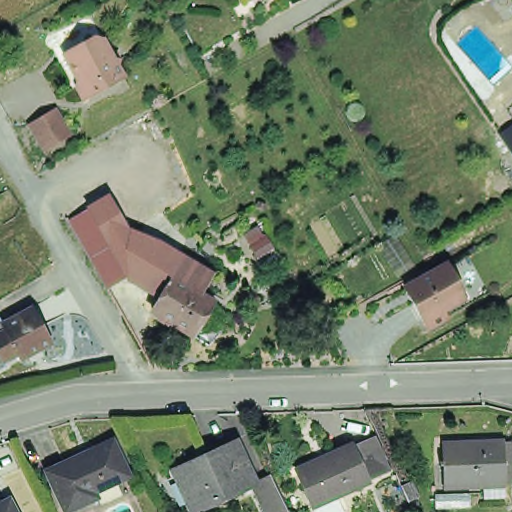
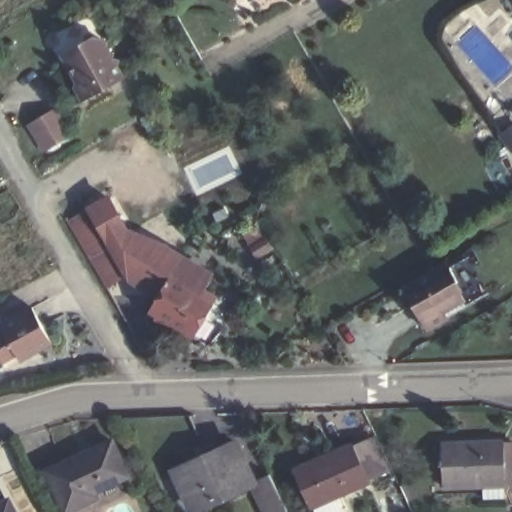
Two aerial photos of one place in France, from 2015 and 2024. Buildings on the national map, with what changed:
unchanged [(249,0),(251,0),(249,1),(249,0)]
unchanged [(82,51),(84,43),(94,38),(101,40),(112,60),(120,62),(117,68),(123,80),(84,101),(76,87),(77,80),(66,59),(82,51)]
unchanged [(55,111),(71,136),(45,152),(29,126),(55,111)]
unchanged [(155,240),(165,247),(123,270),(106,241),(89,210),(109,199),(125,229),(127,232),(155,240)]
unchanged [(165,247),(210,273),(199,293),(173,278),(162,297),(127,277),(123,270),(165,247)]
unchanged [(461,282),(459,283),(467,299),(447,310),(451,319),(430,330),(415,302),(407,288),(410,287),(451,264),(461,282)]
unchanged [(194,335),(189,332),(153,311),(162,297),(173,278),(199,293),(209,299),(213,302),(194,335)]
unchanged [(32,308),(52,345),(20,362),(17,356),(2,363),(0,360),(0,324),(1,326),(32,308)]
unchanged [(334,512),(312,512),(308,502),(290,466),(344,441),(345,443),(364,435),(379,467),(360,476),(361,478),(331,492),(340,510),(334,512)]
unchanged [(442,440),(502,436),(502,438),(512,437),(512,445),(512,459),(504,460),(505,478),(505,492),(484,493),(484,480),(445,483),(442,440)]
unchanged [(87,492),(90,497),(61,511),(43,471),(106,442),(122,476),(87,492)]
unchanged [(250,483),(192,509),(175,473),(208,457),(210,461),(237,450),(255,487),(271,478),(287,512),(263,512),(250,483)]
unchanged [(14,507),(17,512),(4,512),(14,507)]

